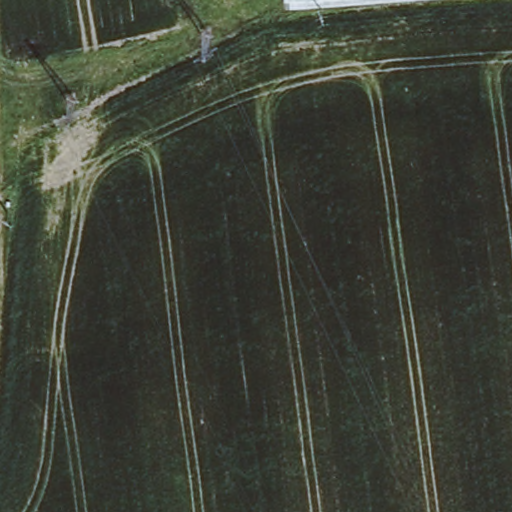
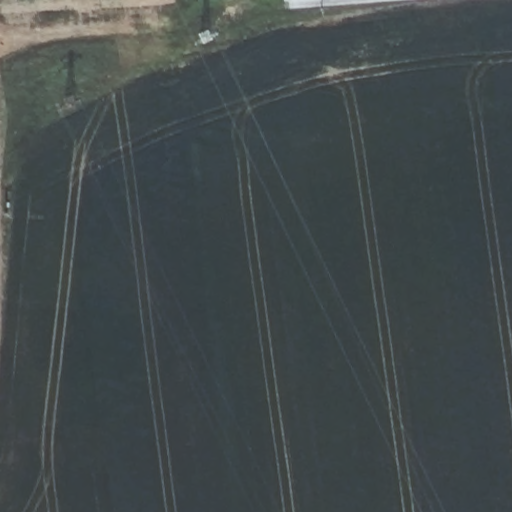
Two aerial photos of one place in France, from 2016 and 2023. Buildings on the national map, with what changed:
unchanged [(286,12),(285,0),(446,0),(286,12)]

